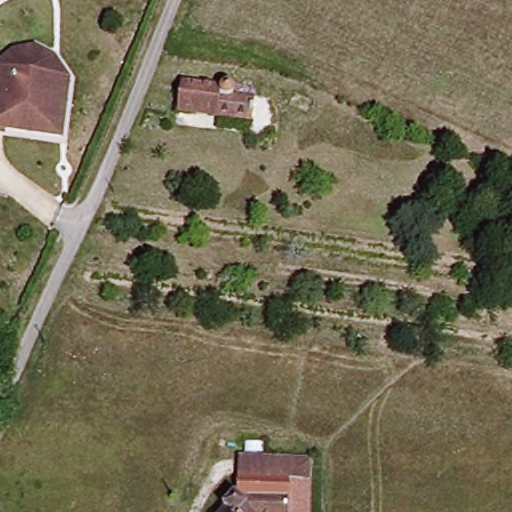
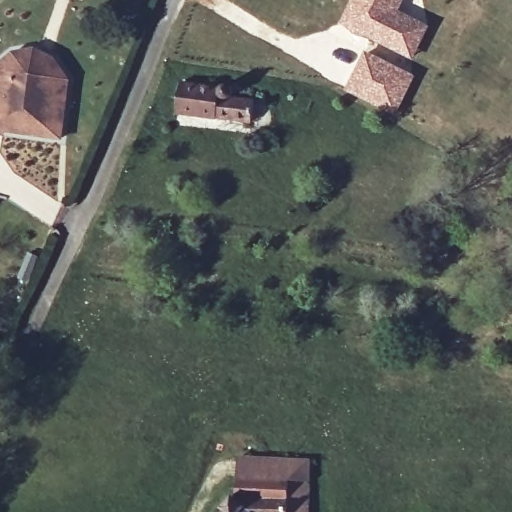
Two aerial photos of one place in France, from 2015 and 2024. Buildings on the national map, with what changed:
new [(404,0),(399,9),(429,24),(413,60),(337,25),(349,0),(404,0)]
unchanged [(0,134),(0,63),(11,51),(31,45),(50,52),(60,56),(68,65),(68,97),(69,135),(0,134)]
new [(364,49),(416,74),(395,116),(344,89),(364,49)]
unchanged [(251,121),(183,121),(184,85),(221,84),(221,97),(251,97),(251,121)]
unchanged [(209,512),(221,499),(231,508),(231,480),(231,462),(253,462),(304,460),(304,480),(309,479),(309,512),(209,512)]

